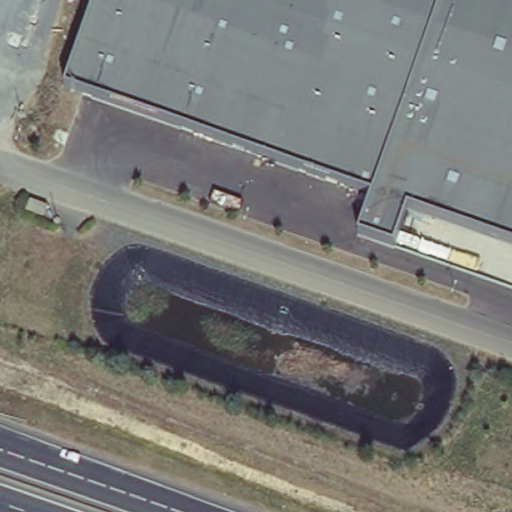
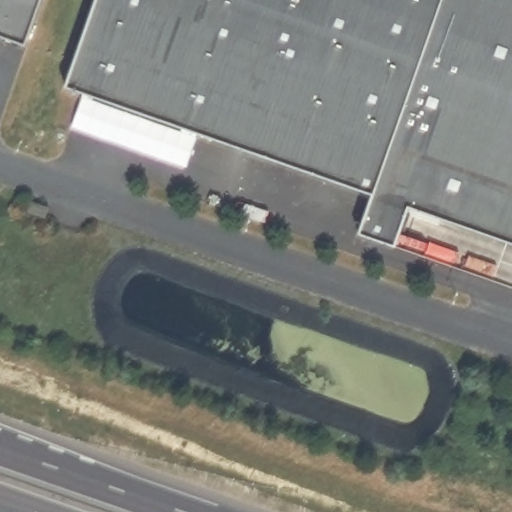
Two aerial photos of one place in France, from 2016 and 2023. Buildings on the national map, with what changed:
new [(23,46),(0,38),(0,0),(40,0),(23,46)]
unchanged [(94,0),(512,0),(512,243),(408,206),(396,244),(358,232),(373,193),(64,85),(94,0)]

